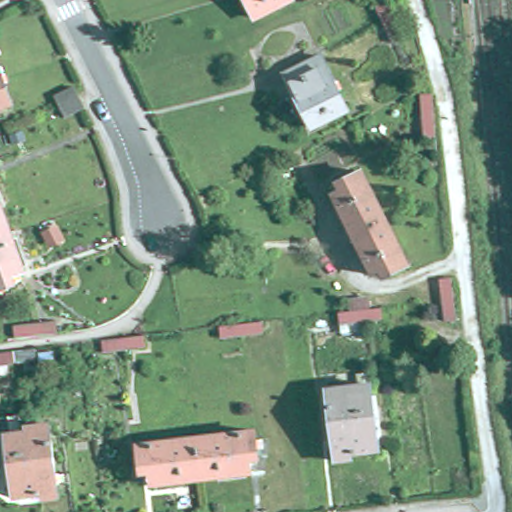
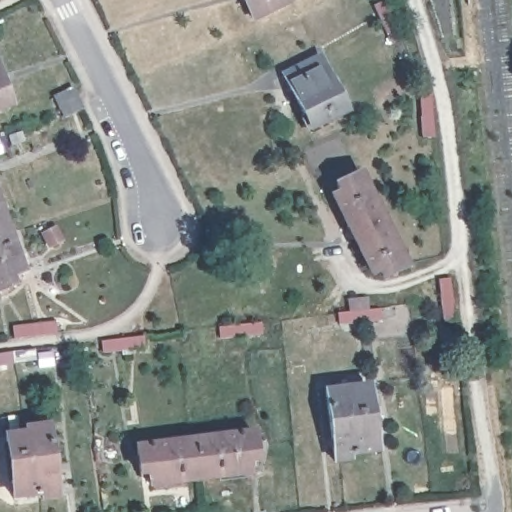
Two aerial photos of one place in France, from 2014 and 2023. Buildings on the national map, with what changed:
unchanged [(290,2),(252,21),(241,0),(290,0),(290,2)]
unchanged [(376,5),(383,2),(402,41),(393,45),(376,5)]
unchanged [(320,56),(345,109),(307,126),(282,74),(320,56)]
unchanged [(9,105),(0,108),(0,79),(9,105)]
unchanged [(54,92),(73,87),(82,107),(60,114),(54,92)]
unchanged [(415,97),(426,95),(432,138),(421,140),(415,97)]
unchanged [(384,275),(380,266),(372,269),(337,195),(344,191),(338,179),(363,168),(410,262),(384,275)]
unchanged [(27,264),(11,270),(15,281),(0,286),(0,191),(27,264)]
unchanged [(437,278),(448,277),(453,320),(442,321),(437,278)]
unchanged [(377,321),(338,325),(336,313),(376,308),(377,321)]
unchanged [(12,337),(10,326),(52,320),(54,332),(12,337)]
unchanged [(259,333),(219,337),(217,325),(257,321),(259,333)]
unchanged [(142,347),(100,352),(98,340),(140,335),(142,347)]
unchanged [(2,350),(14,348),(32,347),(32,360),(0,363),(0,350),(2,350)]
unchanged [(368,388),(374,451),(347,453),(349,461),(330,462),(324,392),(368,388)]
unchanged [(259,453),(250,454),(252,469),(154,481),(152,467),(142,467),(138,438),(255,423),(259,453)]
unchanged [(32,504),(30,497),(12,499),(2,440),(22,437),(21,429),(45,426),(55,501),(32,504)]

